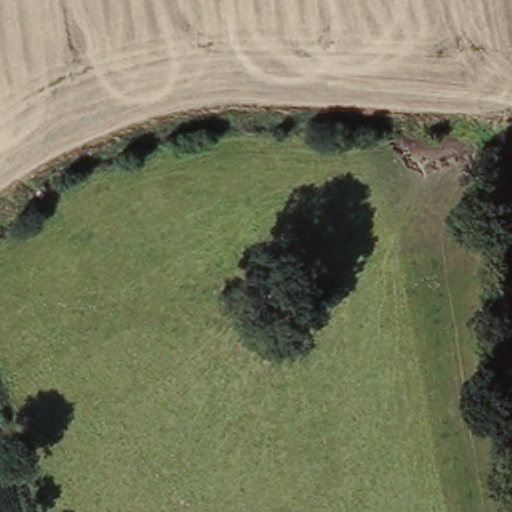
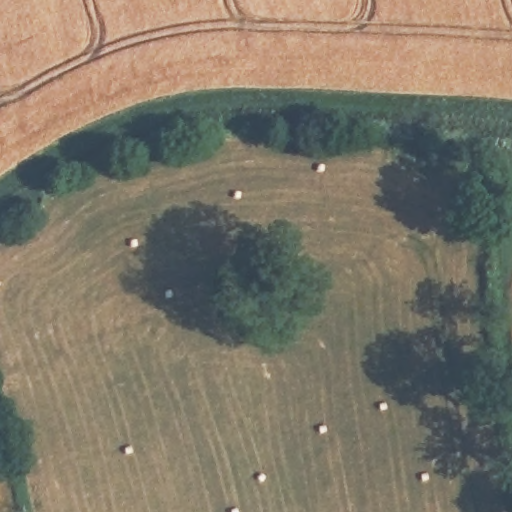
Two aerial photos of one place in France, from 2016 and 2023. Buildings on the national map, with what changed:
[]

